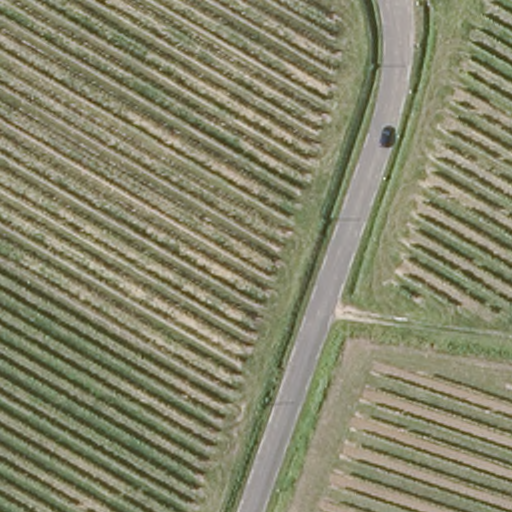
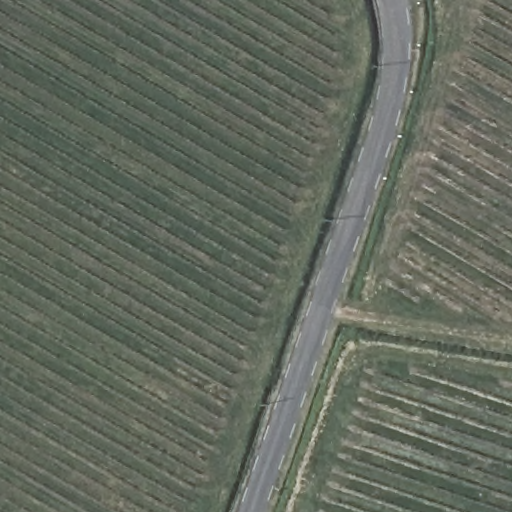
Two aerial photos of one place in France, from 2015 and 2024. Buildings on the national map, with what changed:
[]

